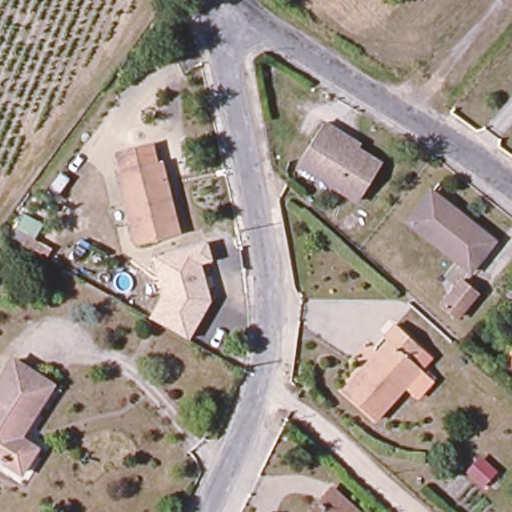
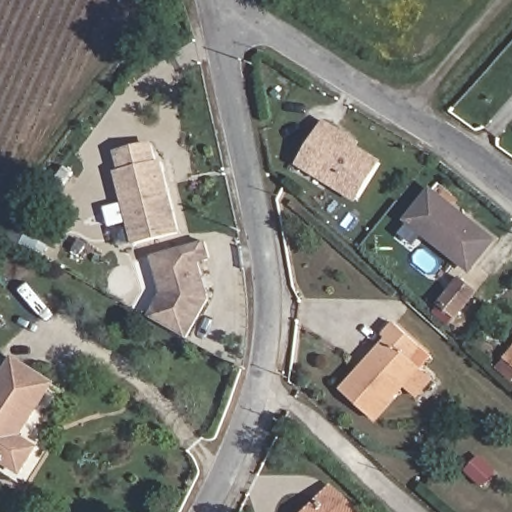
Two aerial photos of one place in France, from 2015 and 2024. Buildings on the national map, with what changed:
unchanged [(317,125),(334,135),(330,141),(377,168),(355,204),(293,167),(317,125)]
unchanged [(123,173),(119,156),(151,148),(155,165),(161,163),(178,231),(136,241),(118,174),(123,173)]
unchanged [(433,196),(494,247),(469,276),(408,226),(433,196)]
unchanged [(212,300),(189,339),(149,316),(163,294),(153,256),(208,241),(213,260),(201,263),(212,300)]
unchanged [(461,282),(477,296),(457,318),(441,305),(461,282)]
unchanged [(368,368),(390,343),(384,338),(395,325),(431,356),(377,421),(344,395),(368,368)]
unchanged [(502,364),(512,352),(512,373),(502,364)]
unchanged [(38,451),(19,480),(0,468),(0,387),(15,363),(53,388),(20,439),(38,451)]
unchanged [(310,512),(314,508),(326,494),(346,512),(310,512)]

